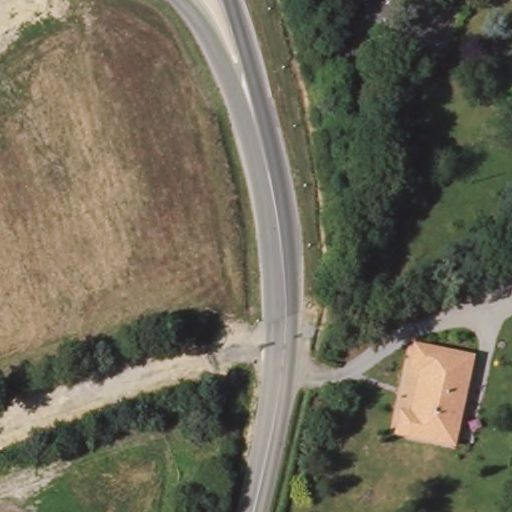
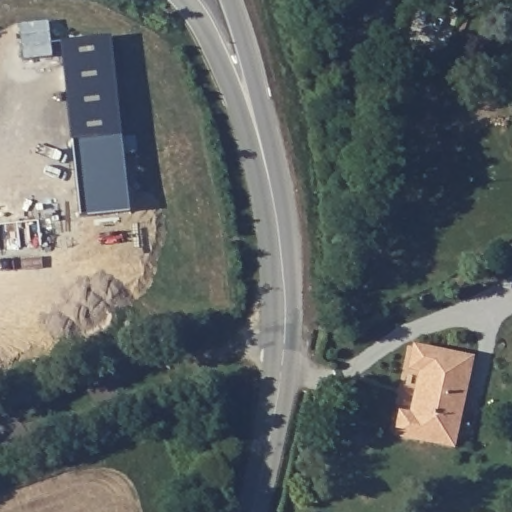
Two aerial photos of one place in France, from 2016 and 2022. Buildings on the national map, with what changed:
new [(49,20),(53,57),(23,60),(19,23),(49,20)]
new [(111,36),(121,135),(72,140),(61,41),(111,36)]
new [(80,185),(130,179),(134,212),(84,220),(80,185)]
unchanged [(472,358),(453,446),(396,434),(401,413),(412,415),(421,370),(411,368),(415,346),(472,358)]

